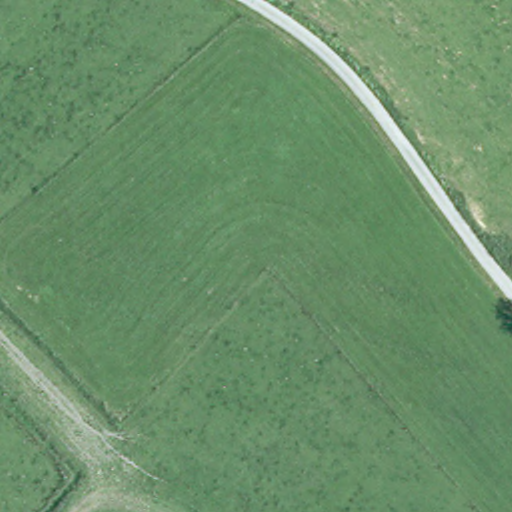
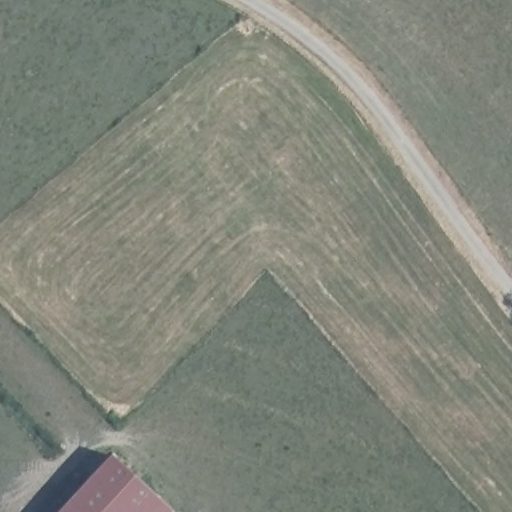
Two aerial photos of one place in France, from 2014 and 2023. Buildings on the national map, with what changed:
new [(113,456),(174,512),(62,512),(113,456)]

